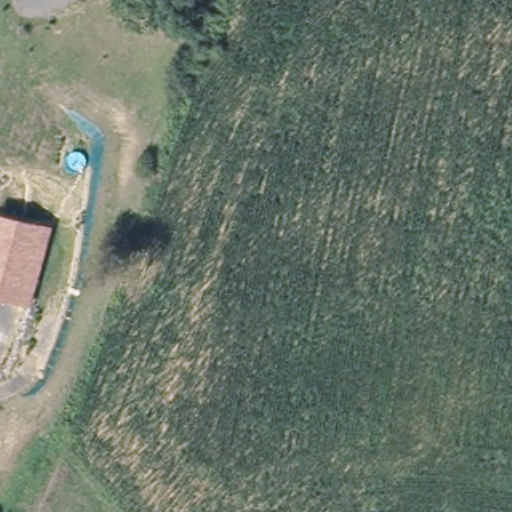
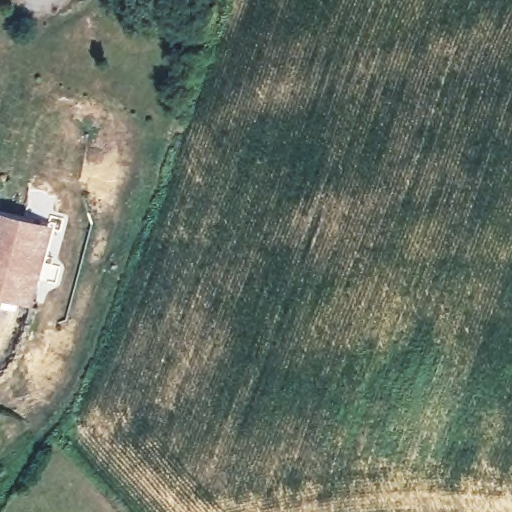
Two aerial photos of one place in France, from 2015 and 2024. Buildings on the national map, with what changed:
unchanged [(0,295),(0,214),(39,224),(48,227),(34,278),(28,302),(0,295)]

